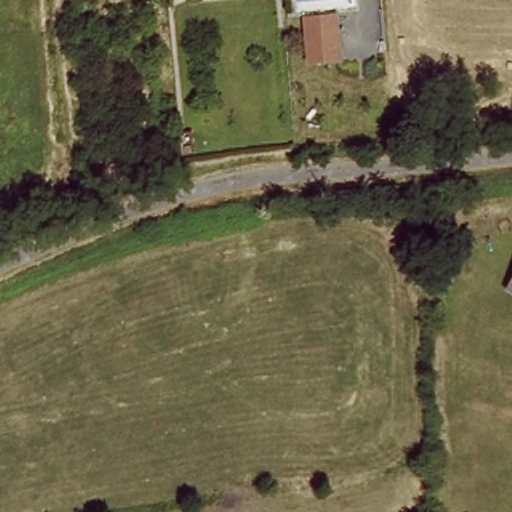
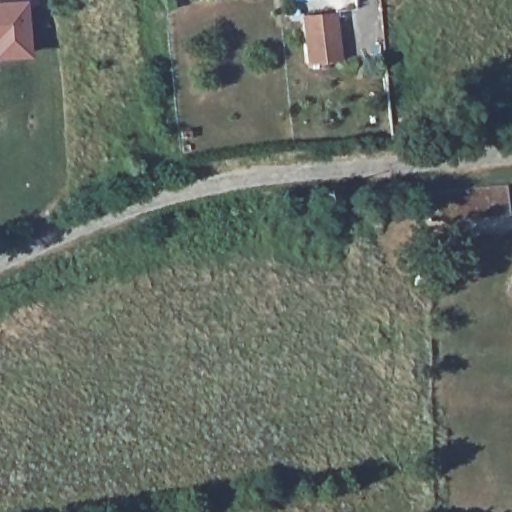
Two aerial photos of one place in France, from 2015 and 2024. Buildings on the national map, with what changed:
new [(0,59),(0,2),(28,1),(31,59),(0,59)]
unchanged [(307,65),(303,31),(302,16),(334,13),(335,29),(339,62),(307,65)]
unchanged [(512,280),(512,288),(508,286),(512,280)]

